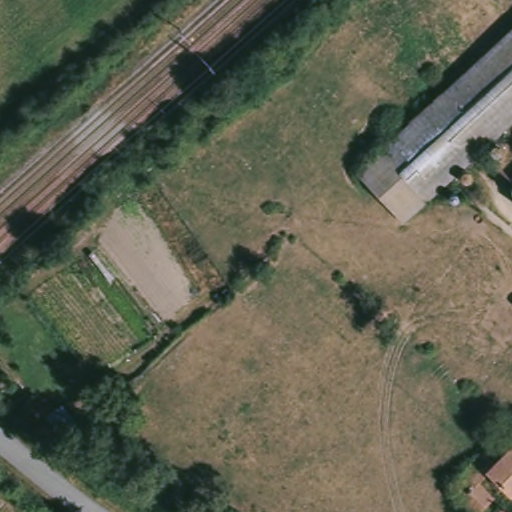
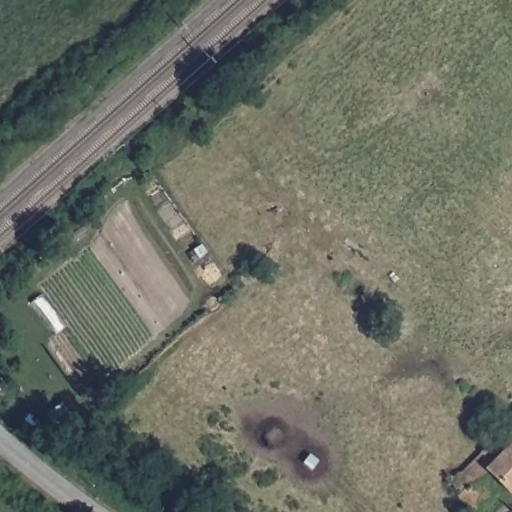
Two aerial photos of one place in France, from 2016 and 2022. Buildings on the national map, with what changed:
demolished [(512,27),(512,126),(494,143),(504,151),(497,158),(490,150),(465,170),(473,180),(463,186),(457,178),(403,222),(357,170),(512,27)]
unchanged [(507,502),(483,479),(472,489),(489,506),(484,512),(458,512),(454,507),(457,503),(449,499),(447,495),(446,491),(449,486),(452,483),(458,481),(491,446),(512,426),(512,498),(507,502)]
unchanged [(501,512),(499,512),(500,511),(501,512)]

